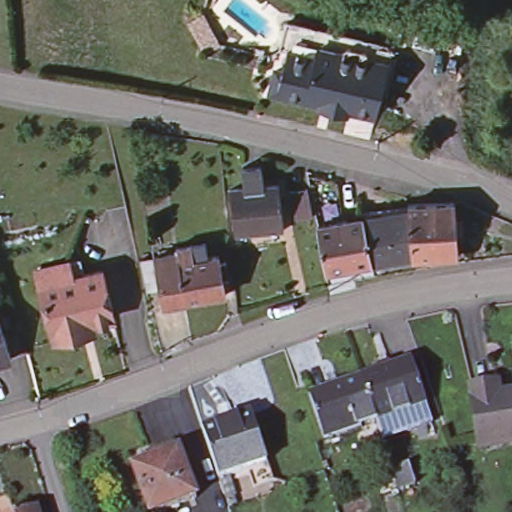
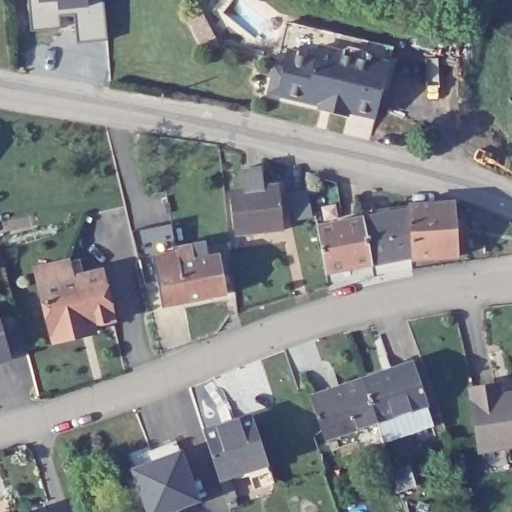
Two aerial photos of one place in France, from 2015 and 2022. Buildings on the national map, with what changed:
new [(110,40),(80,43),(76,7),(61,8),(63,28),(33,31),(30,0),(105,0),(110,40)]
unchanged [(265,79),(269,66),(278,68),(287,30),(367,50),(392,55),(388,73),(376,124),(351,118),(315,110),(270,99),(275,81),(265,79)]
unchanged [(278,233),(230,238),(226,196),(240,194),(238,173),(256,172),(259,192),(274,190),(278,233)]
unchanged [(283,198),(300,193),(306,220),(289,224),(283,198)]
unchanged [(402,214),(402,210),(449,203),(453,257),(407,263),(406,258),(402,214)]
unchanged [(357,222),(402,214),(406,258),(366,266),(357,222)]
unchanged [(321,274),(313,230),(357,222),(366,266),(321,274)]
unchanged [(177,245),(205,240),(208,255),(218,254),(225,293),(185,301),(165,305),(161,286),(147,289),(140,258),(155,255),(179,251),(177,245)]
unchanged [(73,331),(50,337),(37,281),(32,264),(75,254),(80,272),(97,268),(108,315),(87,320),(88,327),(73,331)]
unchanged [(0,362),(0,323),(10,359),(0,362)]
unchanged [(362,375),(411,359),(425,402),(377,418),(362,375)]
unchanged [(323,435),(310,392),(362,375),(377,418),(375,418),(323,435)]
unchanged [(480,438),(472,387),(496,383),(498,395),(512,393),(512,441),(504,442),(480,446),(480,438)]
unchanged [(199,428),(247,411),(262,459),(269,478),(247,485),(242,466),(223,472),(225,480),(228,482),(232,491),(222,495),(215,475),(199,428)]
unchanged [(150,449),(155,447),(175,440),(180,454),(184,465),(197,503),(176,510),(172,512),(150,512),(135,470),(155,463),(150,449)]
unchanged [(387,456),(403,451),(407,462),(413,483),(398,488),(391,467),(387,456)]
unchanged [(14,512),(0,512),(0,500),(9,497),(14,512)]
unchanged [(38,512),(33,512),(38,510),(38,512)]

